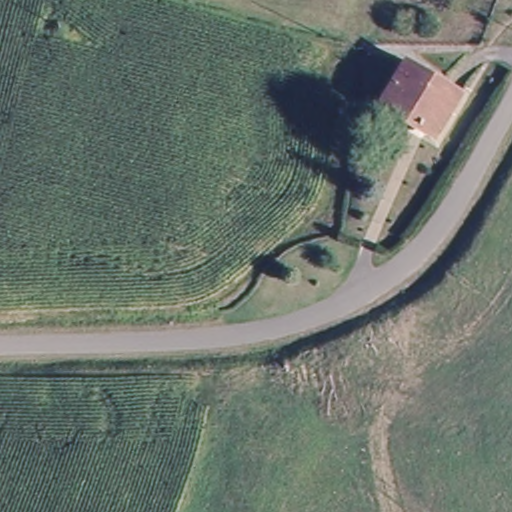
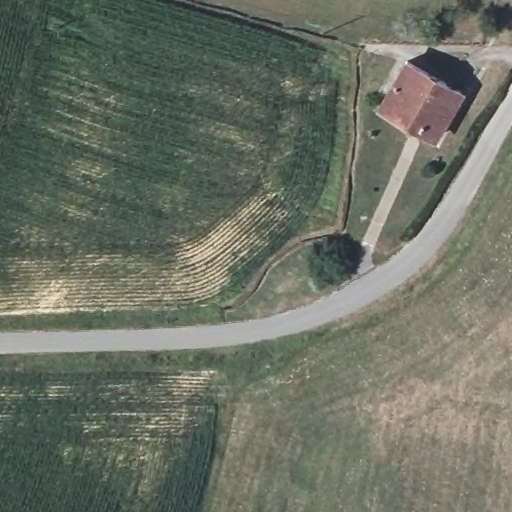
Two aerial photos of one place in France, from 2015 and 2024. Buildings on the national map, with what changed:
unchanged [(455,91),(430,132),(376,99),(400,58),(455,91)]

